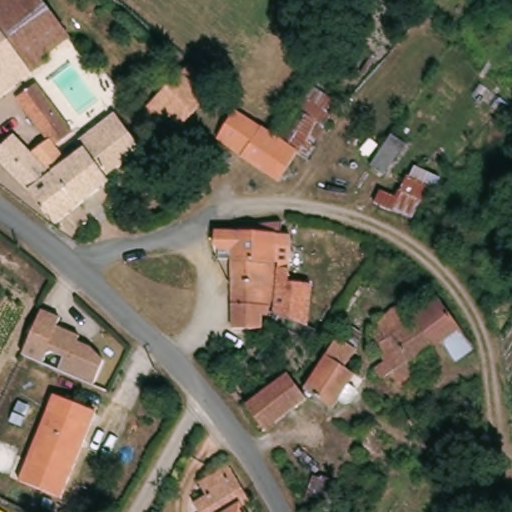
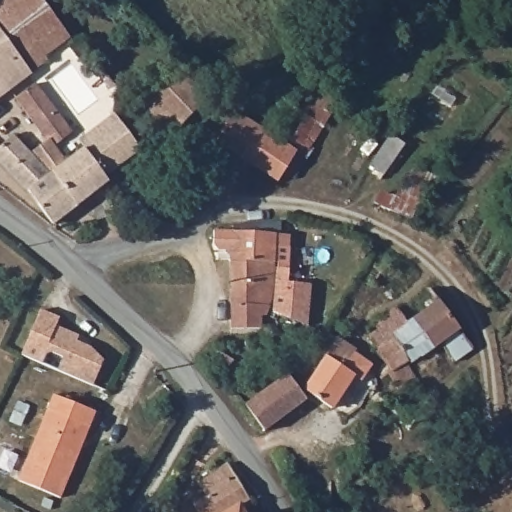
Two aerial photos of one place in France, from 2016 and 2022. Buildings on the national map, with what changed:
unchanged [(40,60),(31,69),(0,28),(0,0),(42,0),(70,38),(40,60)]
unchanged [(0,97),(0,28),(31,69),(33,72),(0,97)]
unchanged [(201,73),(222,94),(199,118),(187,129),(179,136),(152,111),(174,89),(196,69),(201,73)]
unchanged [(17,96),(37,80),(68,121),(74,131),(56,145),(68,161),(86,147),(80,139),(116,113),(123,120),(143,149),(107,175),(110,180),(55,224),(45,211),(36,199),(24,186),(23,183),(19,179),(0,160),(0,148),(14,134),(32,151),(49,138),(17,96)]
unchanged [(311,148),(290,137),(316,94),(336,101),(311,148)]
unchanged [(288,146),(297,152),(279,185),(244,163),(215,140),(232,112),(254,126),(269,135),(288,146)]
unchanged [(385,179),(365,166),(386,129),(406,143),(385,179)]
unchanged [(437,174),(418,219),(375,207),(379,189),(397,195),(414,168),(437,174)]
unchanged [(219,250),(213,244),(214,230),(234,231),(234,225),(259,223),(282,221),(282,226),(282,230),(290,230),(289,241),(290,242),(289,280),(279,278),(279,265),(274,264),(274,262),(265,262),(259,262),(248,261),(233,261),(233,259),(220,259),(219,250)]
unchanged [(233,261),(248,261),(259,262),(265,262),(274,262),(274,264),(274,274),(273,287),(270,294),(268,301),(267,307),(267,310),(267,318),(260,317),(260,330),(230,331),(231,312),(231,304),(233,261)]
unchanged [(373,290),(362,283),(369,272),(378,279),(373,290)]
unchanged [(409,325),(442,300),(462,327),(476,347),(456,362),(442,343),(432,350),(411,365),(418,378),(402,390),(392,375),(384,381),(375,369),(385,361),(369,338),(381,330),(377,324),(399,309),(404,318),(409,325)]
unchanged [(60,318),(57,326),(80,335),(78,340),(89,345),(104,362),(92,386),(56,370),(63,356),(48,350),(41,363),(19,355),(39,308),(60,318)]
unchanged [(358,353),(347,371),(356,377),(351,385),(359,390),(352,403),(346,404),(340,401),(334,410),(314,396),(266,432),(245,407),(289,374),(304,395),(340,341),(358,353)]
unchanged [(28,462),(54,397),(96,415),(69,479),(60,500),(19,483),(28,462)]
unchanged [(193,504),(205,497),(198,484),(227,467),(248,502),(240,507),(243,512),(198,512),(193,504)]

